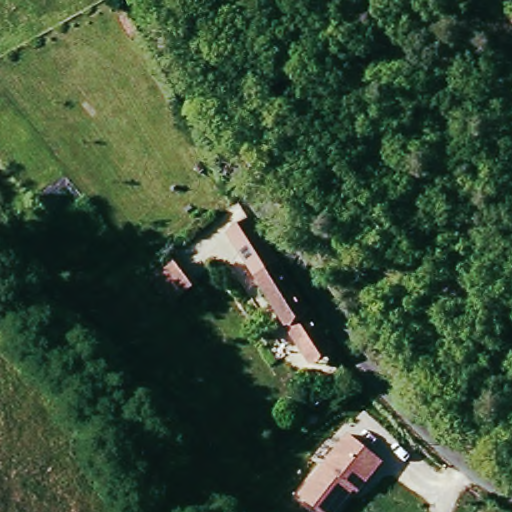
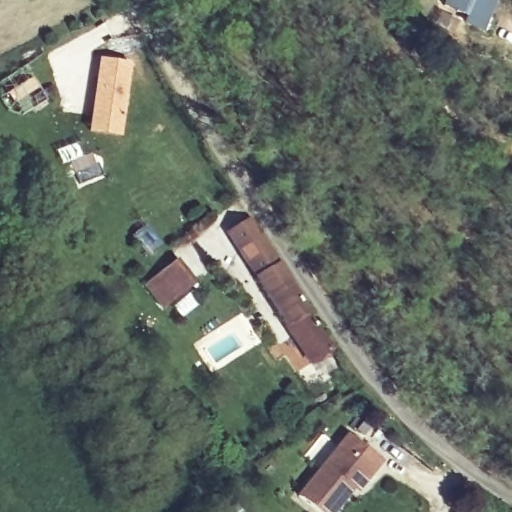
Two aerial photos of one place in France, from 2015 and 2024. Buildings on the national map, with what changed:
new [(442,6),(445,0),(492,0),(497,1),(482,34),(462,25),(465,17),(442,6)]
new [(98,56),(133,63),(120,139),(86,133),(98,56)]
unchanged [(226,233),(254,217),(312,312),(337,354),(310,369),(285,328),(226,233)]
unchanged [(170,280),(190,264),(208,287),(189,303),(170,280)]
unchanged [(168,441),(152,454),(132,431),(148,417),(168,441)]
unchanged [(347,431),(385,460),(360,495),(354,491),(335,512),(323,512),(297,491),(347,431)]

